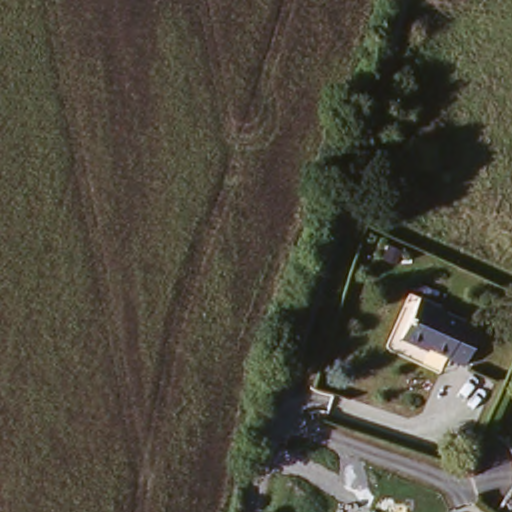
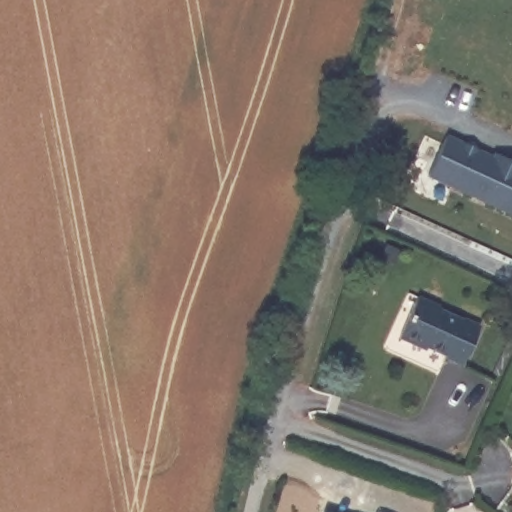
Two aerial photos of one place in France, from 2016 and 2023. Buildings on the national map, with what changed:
new [(495,152),(512,161),(512,215),(427,176),(447,136),(492,155),(495,152)]
unchanged [(443,309),(445,304),(457,311),(453,319),(467,327),(469,321),(485,328),(467,371),(450,363),(453,358),(428,344),(425,351),(405,341),(422,297),(443,309)]

